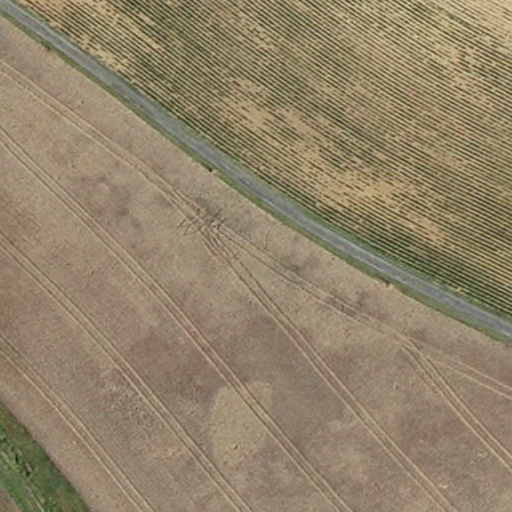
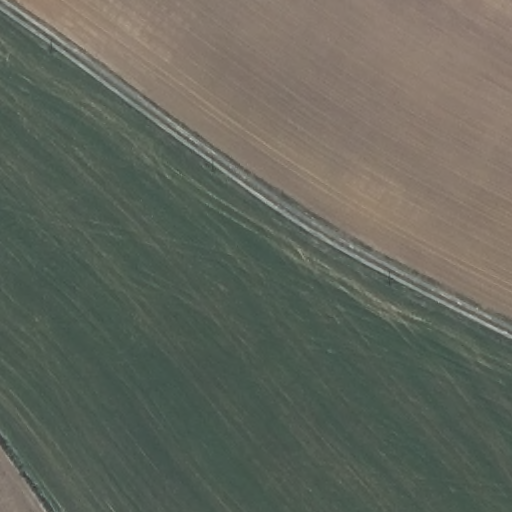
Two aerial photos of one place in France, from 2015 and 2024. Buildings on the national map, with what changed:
[]

